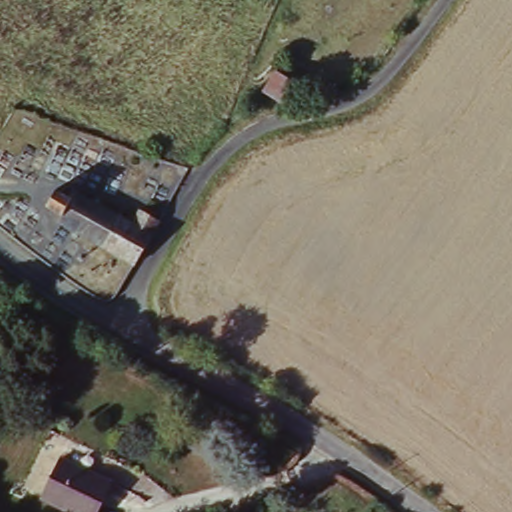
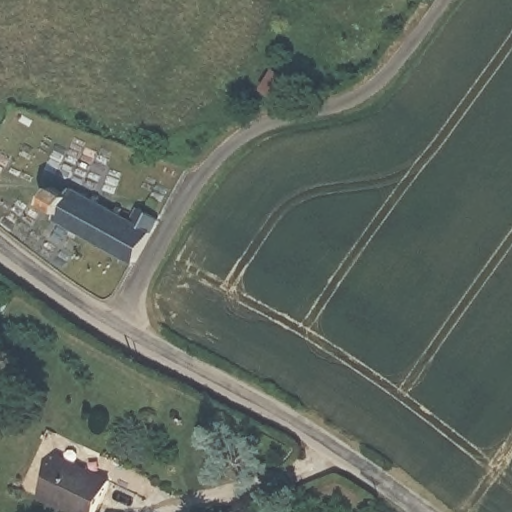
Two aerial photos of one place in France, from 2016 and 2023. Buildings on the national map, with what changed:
unchanged [(269,80),(284,87),(273,110),(258,102),(269,80)]
unchanged [(94,241),(89,251),(73,240),(79,230),(59,215),(61,211),(46,202),(50,196),(47,195),(50,189),(53,190),(56,185),(72,196),(75,190),(99,205),(102,199),(117,209),(112,214),(134,228),(144,212),(163,223),(137,267),(94,241)]
unchanged [(110,487),(99,512),(56,512),(40,504),(58,463),(110,487)]

